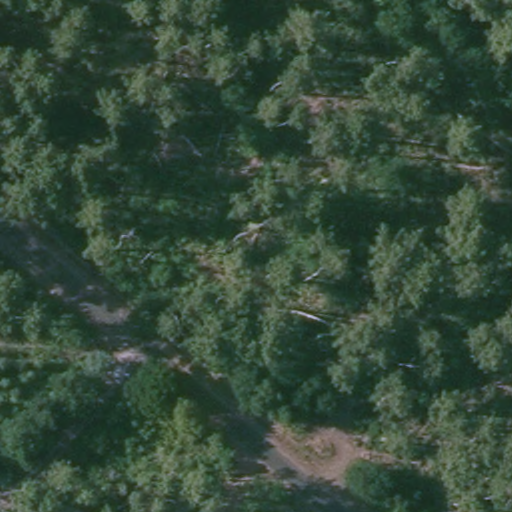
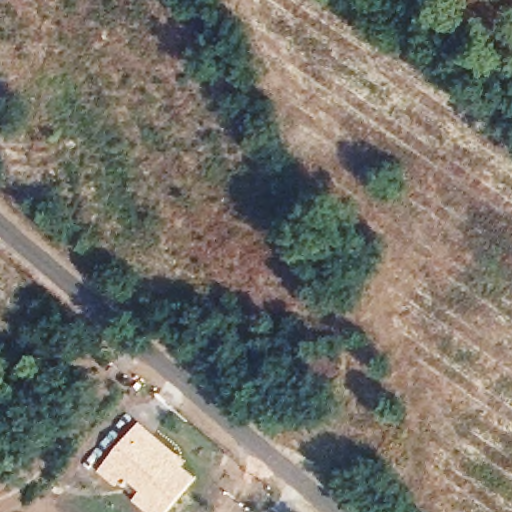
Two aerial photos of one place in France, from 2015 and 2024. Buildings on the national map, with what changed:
new [(142,422),(186,462),(184,465),(196,477),(167,512),(148,512),(132,500),(140,490),(126,479),(118,487),(99,470),(142,422)]

